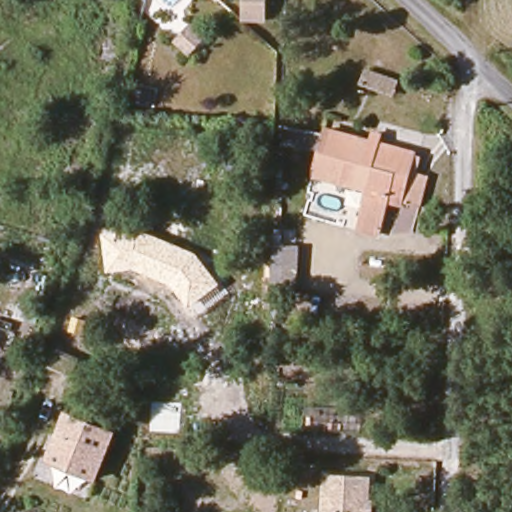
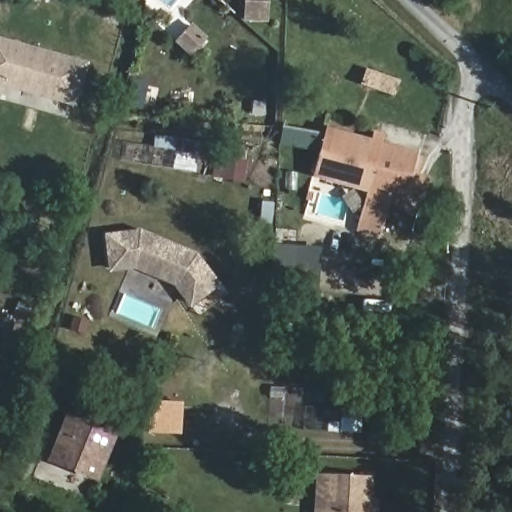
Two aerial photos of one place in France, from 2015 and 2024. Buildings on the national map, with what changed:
unchanged [(217,0),(219,0),(218,1),(217,0)]
unchanged [(242,23),(243,0),(269,0),(268,23),(242,23)]
new [(76,108),(0,86),(0,38),(89,63),(76,108)]
unchanged [(393,99),(362,89),(368,73),(397,85),(393,99)]
unchanged [(427,164),(414,214),(398,209),(385,205),(373,237),(349,228),(362,192),(308,172),(325,130),(366,145),(365,149),(372,153),(375,146),(414,162),(416,159),(427,164)]
unchanged [(103,233),(137,228),(196,252),(221,285),(190,307),(172,285),(135,268),(108,272),(103,233)]
unchanged [(299,248),(296,297),(271,297),(272,245),(299,248)]
unchanged [(74,379),(47,367),(58,344),(85,357),(74,379)]
unchanged [(119,432),(99,483),(46,463),(68,412),(119,432)]
unchanged [(365,512),(321,512),(322,474),(363,473),(365,512)]

